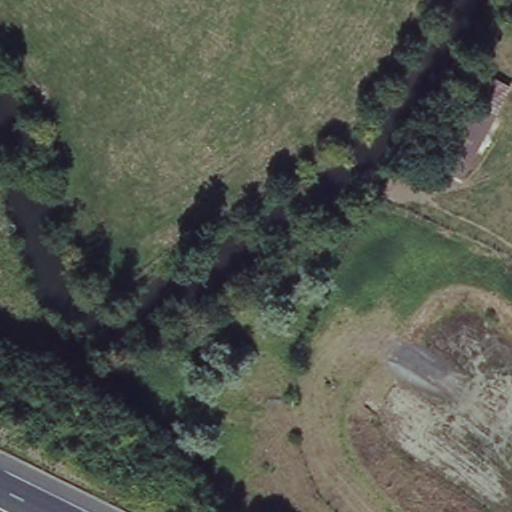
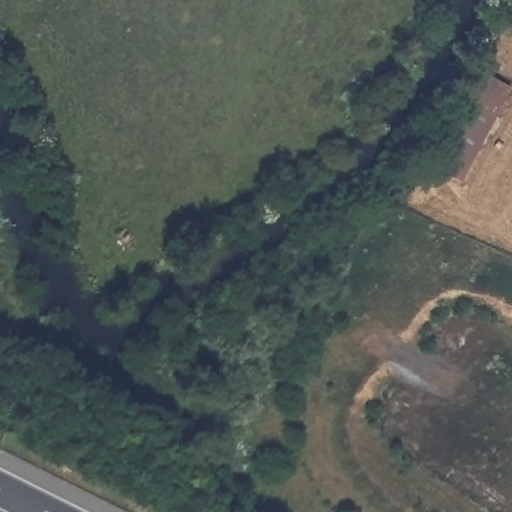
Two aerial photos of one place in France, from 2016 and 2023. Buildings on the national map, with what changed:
unchanged [(435,164),(470,99),(484,71),(510,84),(497,112),(461,177),(435,164)]

